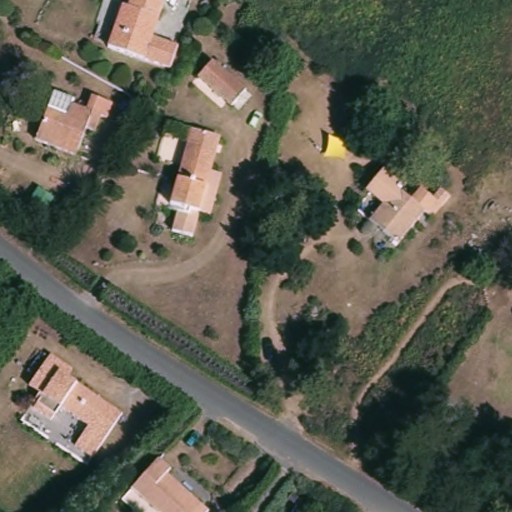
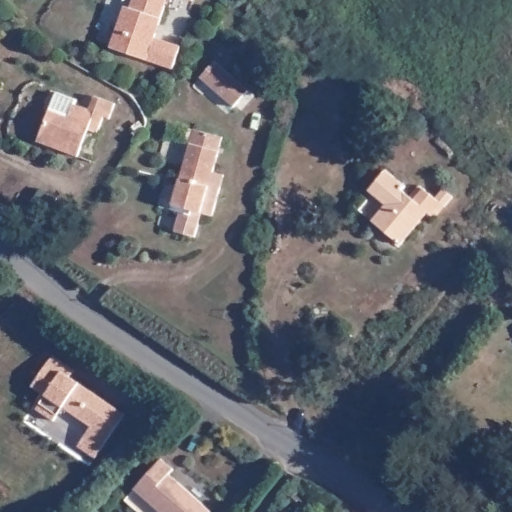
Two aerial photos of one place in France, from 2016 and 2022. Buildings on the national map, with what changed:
unchanged [(145,0),(150,1),(149,4),(164,10),(151,42),(115,29),(127,0),(145,0)]
unchanged [(150,1),(145,0),(167,0),(164,10),(149,4),(150,1)]
unchanged [(177,53),(171,69),(110,47),(115,29),(151,42),(177,53)]
unchanged [(216,60),(250,89),(236,104),(203,74),(216,60)]
unchanged [(56,92),(77,100),(76,102),(84,104),(92,108),(97,94),(117,101),(110,117),(105,116),(99,132),(87,128),(77,154),(38,139),(56,92)]
unchanged [(208,214),(203,239),(179,235),(184,210),(174,208),(176,193),(188,130),(219,137),(213,172),(225,174),(222,190),(217,216),(208,214)]
unchanged [(387,204),(372,189),(390,169),(409,186),(405,190),(417,200),(426,190),(438,200),(446,192),(456,200),(447,209),(445,207),(435,218),(430,214),(401,244),(373,218),(387,204)]
unchanged [(78,444),(91,425),(63,406),(54,419),(36,407),(45,394),(42,392),(32,384),(53,354),(68,364),(75,368),(70,376),(125,413),(95,457),(78,444)]
unchanged [(196,512),(162,512),(134,487),(161,457),(173,468),(169,473),(204,503),(196,512)]

